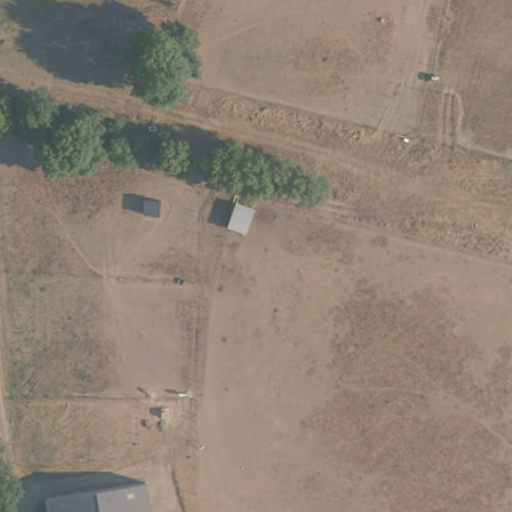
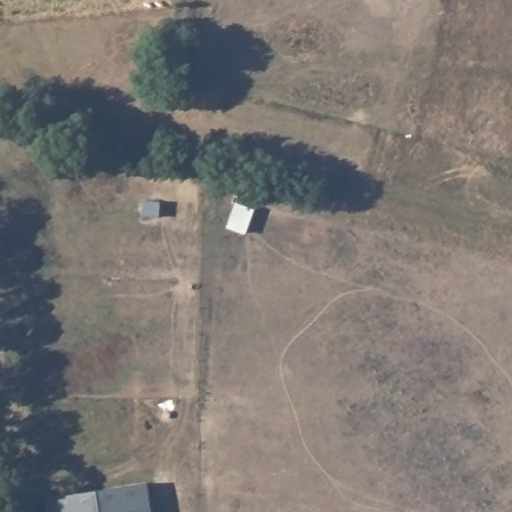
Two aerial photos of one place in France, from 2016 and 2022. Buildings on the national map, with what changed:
unchanged [(45,499),(146,483),(151,512),(47,512),(45,499)]

